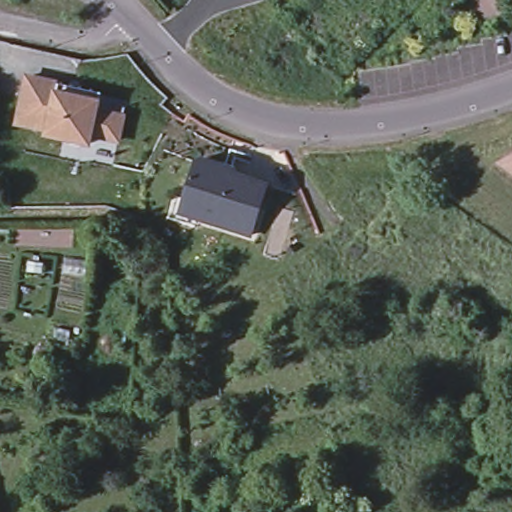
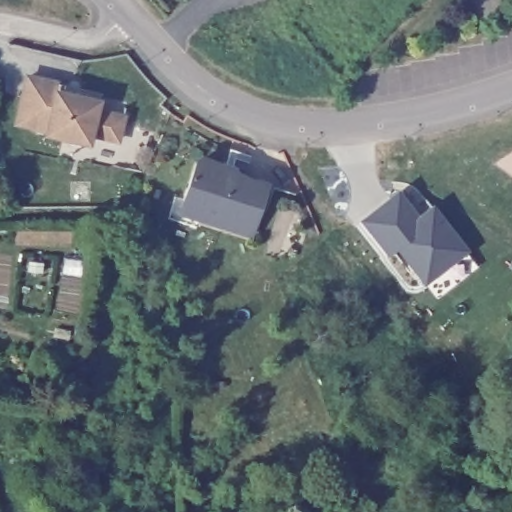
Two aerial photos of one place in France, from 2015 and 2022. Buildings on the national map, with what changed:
unchanged [(25,76),(57,83),(56,91),(95,100),(93,109),(120,116),(115,139),(90,133),(88,141),(46,133),(47,129),(16,123),(25,76)]
unchanged [(252,229),(198,211),(202,198),(185,193),(197,156),(203,152),(217,156),(220,163),(217,171),(230,175),(232,166),(268,179),(252,229)]
new [(470,251),(425,286),(396,251),(388,258),(359,221),(398,190),(417,217),(433,206),(470,251)]

